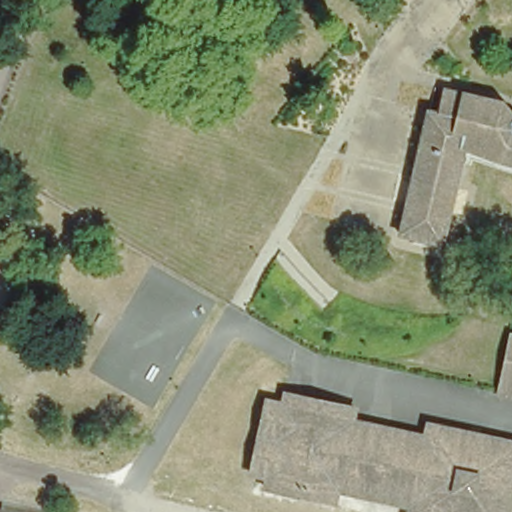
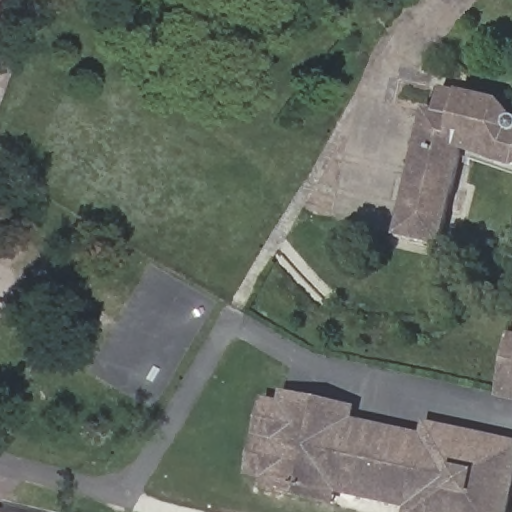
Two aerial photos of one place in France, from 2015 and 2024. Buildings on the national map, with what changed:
unchanged [(443,250),(401,240),(430,115),(438,117),(447,83),(453,85),(456,86),(458,90),(459,94),(458,97),(504,108),(512,118),(512,170),(465,153),(443,250)]
unchanged [(501,392),(512,342),(512,395),(501,392)]
unchanged [(267,476),(251,472),(266,400),(283,404),(286,392),(356,408),(353,420),(426,436),(410,505),(336,488),(335,491),(334,500),(265,485),(267,476)]
unchanged [(512,443),(512,484),(505,512),(409,512),(410,505),(426,436),(429,423),(512,443)]
unchanged [(6,512),(9,499),(59,512),(6,512)]
unchanged [(0,512),(0,511),(6,512),(0,512)]

